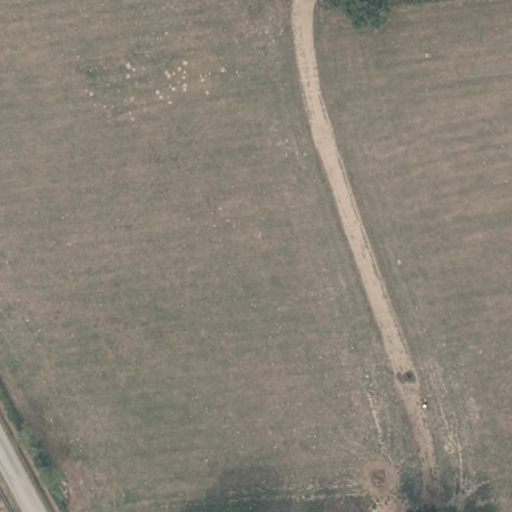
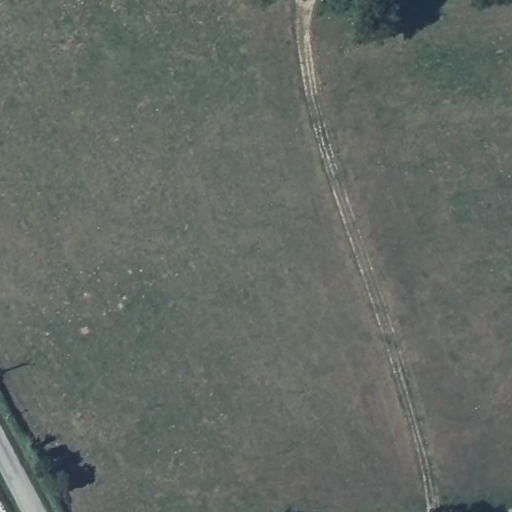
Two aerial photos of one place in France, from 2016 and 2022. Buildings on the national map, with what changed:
[]

